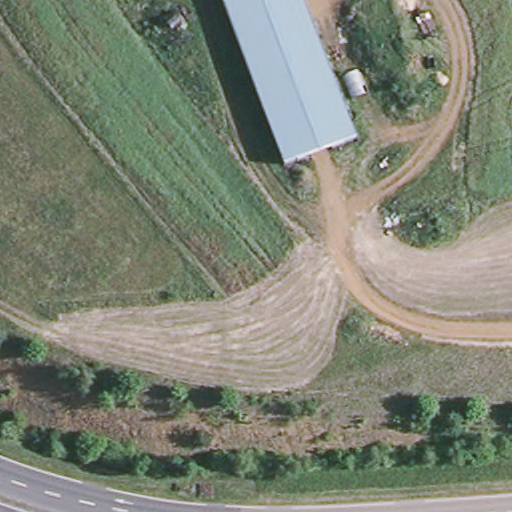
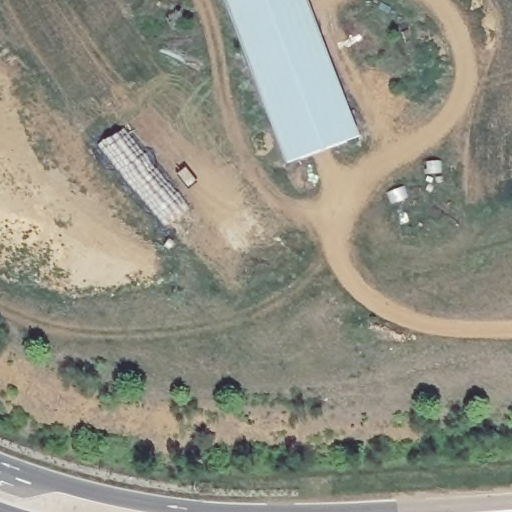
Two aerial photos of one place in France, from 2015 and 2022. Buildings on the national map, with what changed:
unchanged [(287,164),(223,0),(307,0),(360,136),(287,164)]

